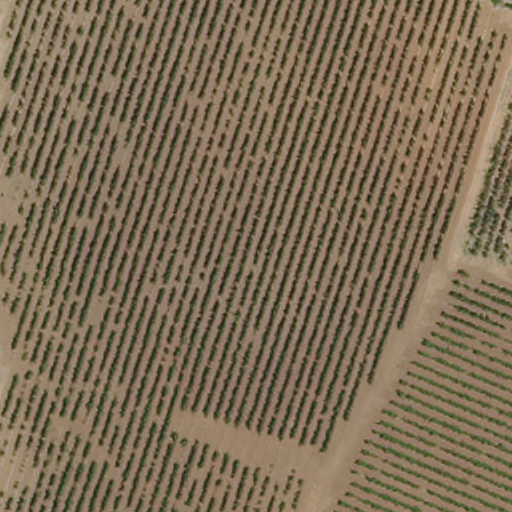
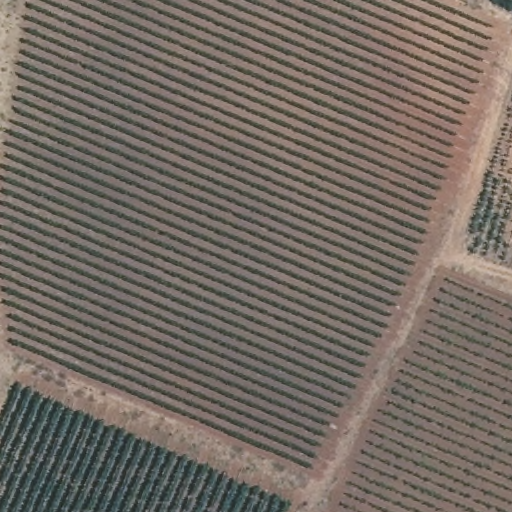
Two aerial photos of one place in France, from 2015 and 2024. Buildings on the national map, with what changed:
unchanged [(495,0),(512,0),(512,6),(495,1),(495,0)]

